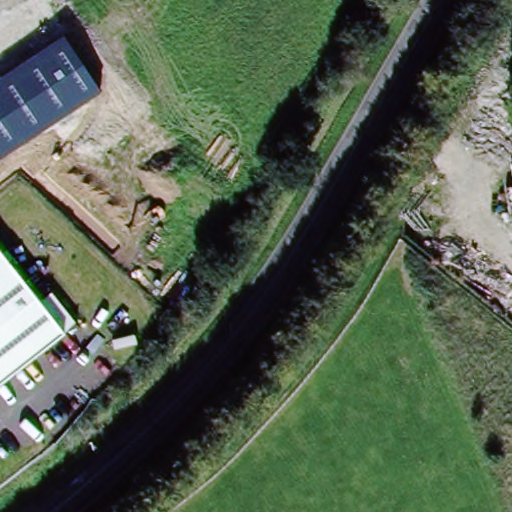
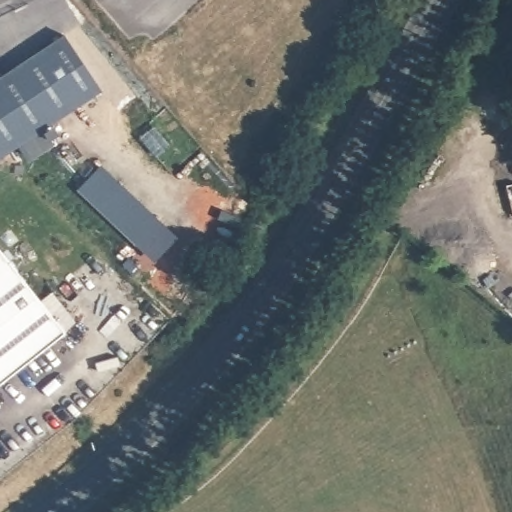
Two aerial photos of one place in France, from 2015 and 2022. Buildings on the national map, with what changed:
unchanged [(100,91),(0,157),(0,77),(63,36),(100,91)]
new [(160,220),(136,246),(75,192),(100,166),(160,220)]
unchanged [(0,257),(62,331),(0,381),(0,257)]

